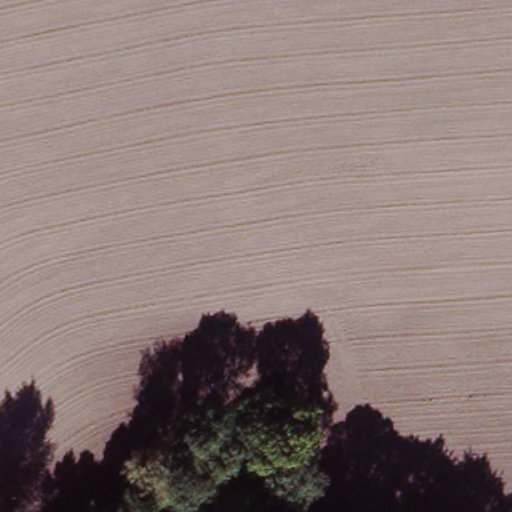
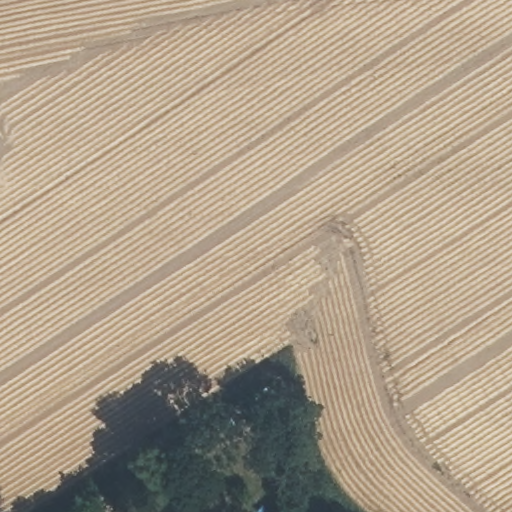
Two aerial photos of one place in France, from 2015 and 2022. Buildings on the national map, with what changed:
unchanged [(292,512),(283,512),(287,507),(292,512)]

